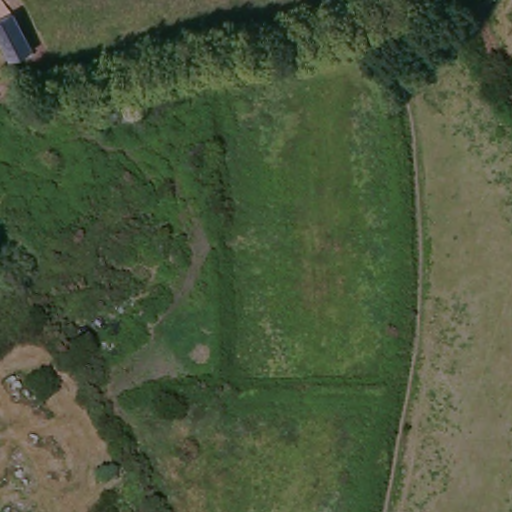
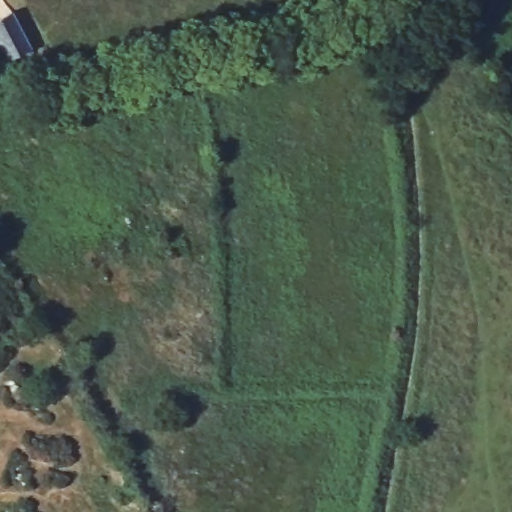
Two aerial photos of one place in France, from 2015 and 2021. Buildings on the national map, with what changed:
unchanged [(30,51),(11,61),(0,40),(0,18),(11,12),(30,51)]

